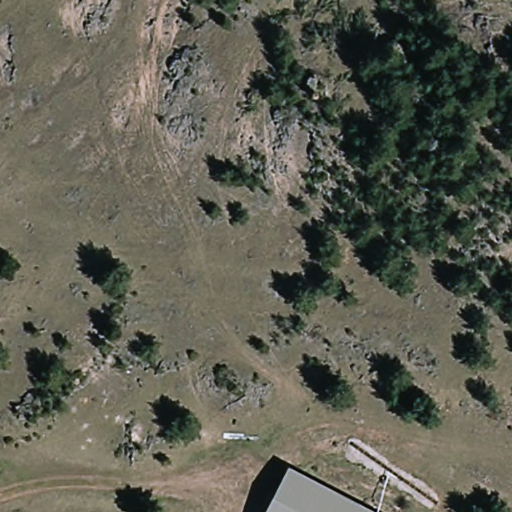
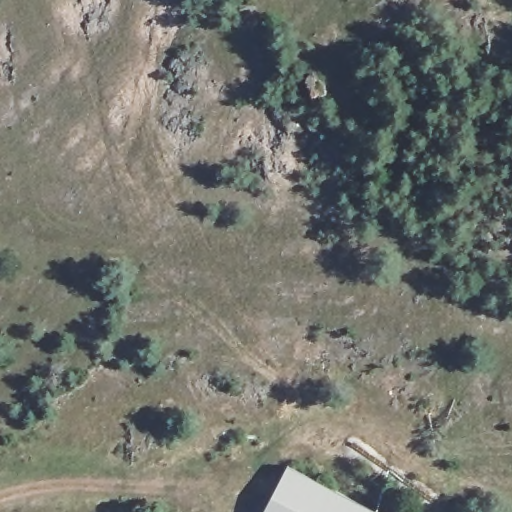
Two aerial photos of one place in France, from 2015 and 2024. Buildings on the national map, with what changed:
unchanged [(267,512),(288,467),(369,512),(267,512)]

